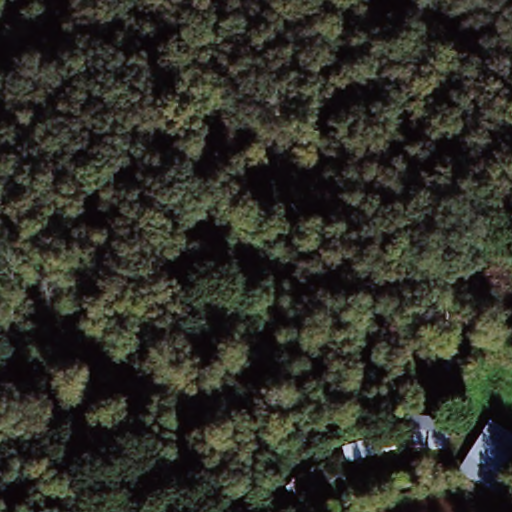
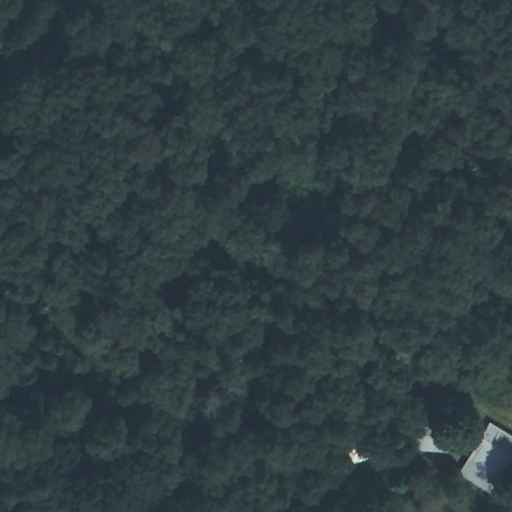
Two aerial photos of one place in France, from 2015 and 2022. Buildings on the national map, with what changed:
unchanged [(492,425),(512,438),(512,492),(510,493),(467,462),(492,425)]

